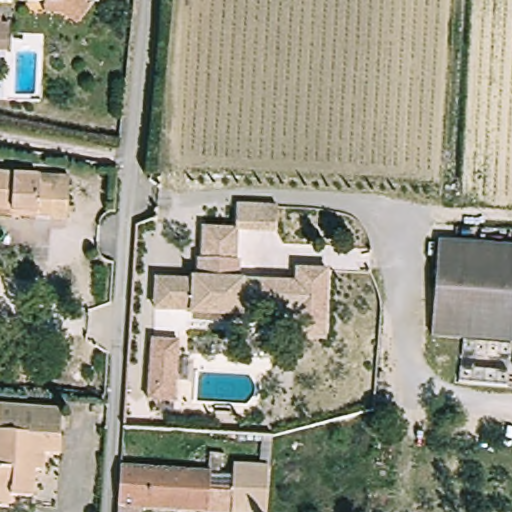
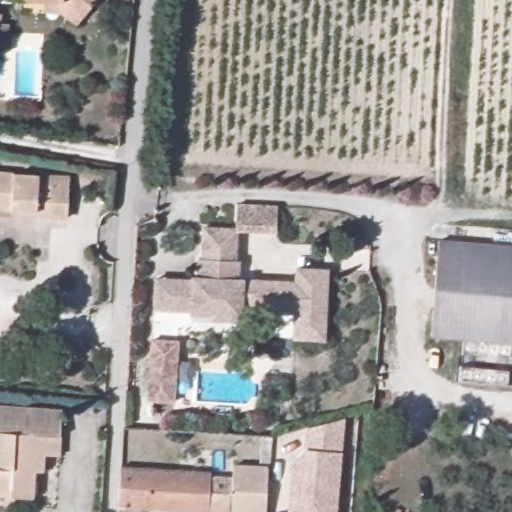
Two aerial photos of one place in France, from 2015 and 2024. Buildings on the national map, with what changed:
unchanged [(73,0),(101,0),(91,15),(73,0)]
unchanged [(11,205),(0,205),(0,182),(1,171),(40,172),(40,182),(58,184),(57,218),(37,217),(11,215),(11,205)]
unchanged [(242,225),(243,201),(283,203),(283,227),(242,225)]
unchanged [(160,277),(175,278),(193,279),(199,273),(200,256),(204,256),(205,222),(223,224),(220,315),(195,315),(190,308),(172,307),(158,306),(160,277)]
unchanged [(297,340),(297,321),(298,314),(256,312),(255,303),(245,304),(243,320),(220,318),(220,315),(223,224),(240,225),(239,260),(243,260),(243,282),(301,285),(301,271),(327,272),(328,276),(325,322),(324,341),(297,340)]
unchanged [(512,340),(434,335),(435,326),(442,238),(481,241),(512,243),(512,340)]
unchanged [(153,400),(157,340),(183,341),(180,400),(153,400)]
unchanged [(6,404),(4,429),(0,429),(0,404),(6,404)]
unchanged [(0,501),(0,454),(2,455),(4,429),(6,404),(70,407),(66,450),(48,448),(47,470),(37,470),(36,480),(35,495),(35,503),(0,501)]
new [(336,512),(287,512),(291,463),(305,449),(308,428),(345,418),(342,453),(336,512)]
unchanged [(144,509),(144,512),(124,512),(127,464),(214,467),(214,492),(240,493),(242,471),(275,471),(272,512),(182,512),(144,509)]

